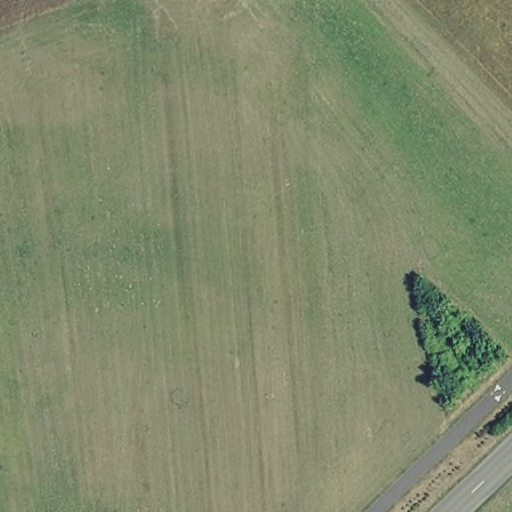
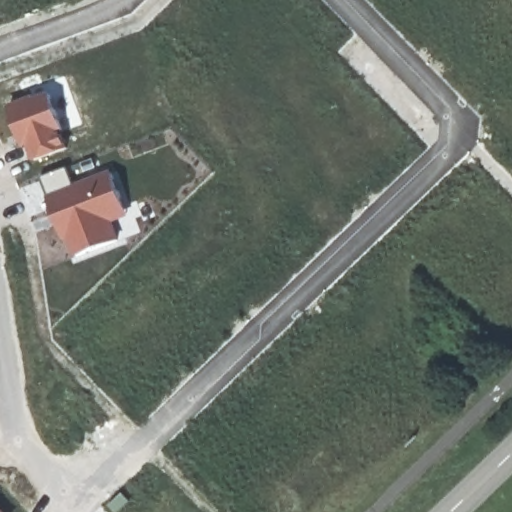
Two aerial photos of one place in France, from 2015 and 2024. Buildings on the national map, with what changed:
new [(50,90),(70,149),(32,162),(10,105),(50,90)]
new [(67,167),(75,183),(110,169),(128,218),(116,223),(122,241),(70,260),(42,176),(67,167)]
new [(0,512),(0,506),(5,512),(0,512)]

